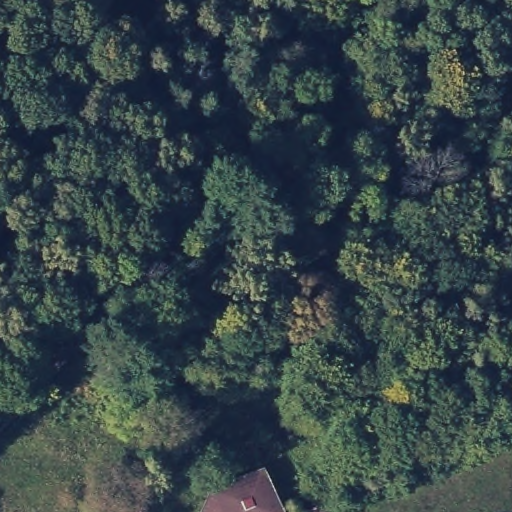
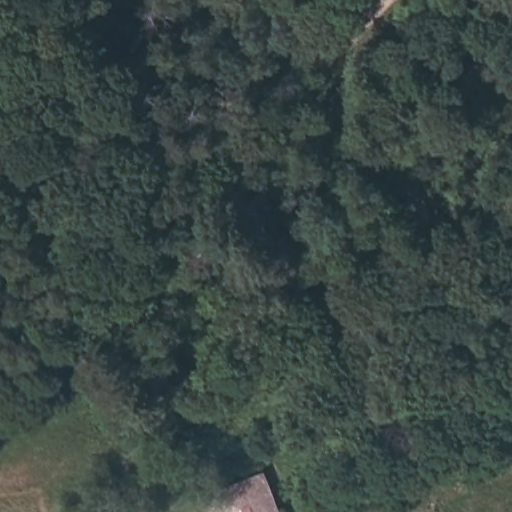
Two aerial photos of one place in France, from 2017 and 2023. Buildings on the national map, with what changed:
unchanged [(257,470),(275,476),(282,512),(200,512),(207,485),(257,470)]
unchanged [(331,512),(298,512),(337,499),(331,512)]

